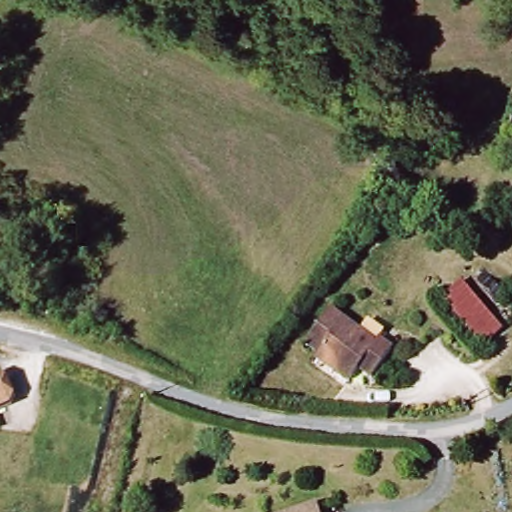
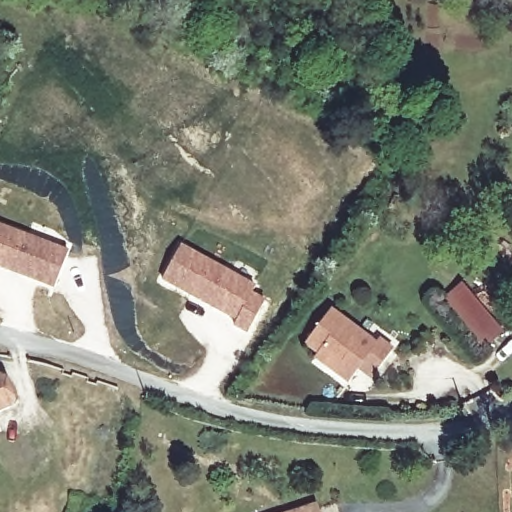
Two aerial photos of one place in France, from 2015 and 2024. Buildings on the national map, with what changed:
new [(0,268),(0,226),(68,253),(54,290),(0,268)]
new [(255,287),(252,292),(266,300),(247,335),(232,328),(235,322),(161,280),(181,245),(255,287)]
unchanged [(510,331),(490,349),(448,302),(467,284),(510,331)]
unchanged [(312,341),(332,309),(381,340),(384,335),(398,344),(377,374),(365,367),(355,384),(336,371),(317,359),(323,348),(312,341)]
unchanged [(0,420),(0,380),(4,379),(14,384),(22,403),(17,413),(0,420)]
unchanged [(327,512),(312,512),(325,508),(327,512)]

